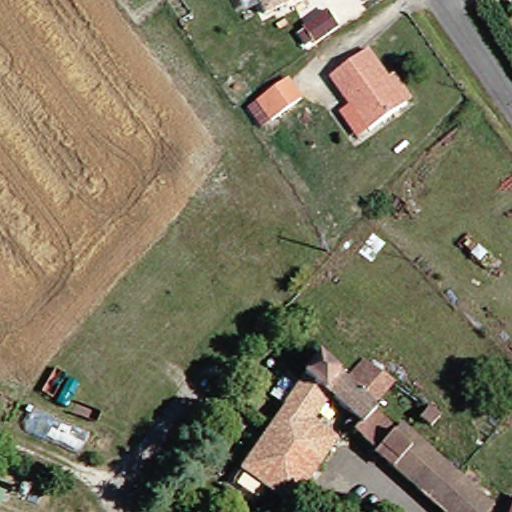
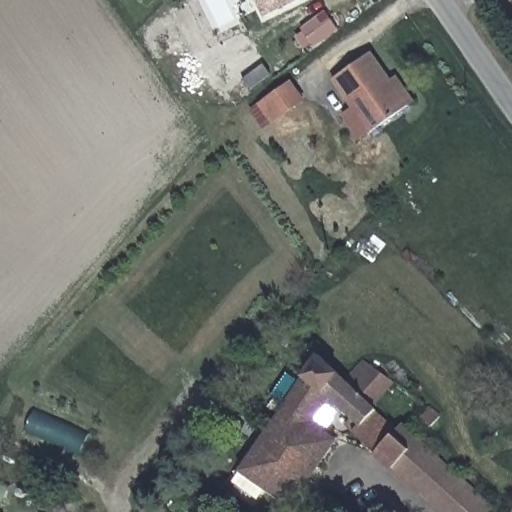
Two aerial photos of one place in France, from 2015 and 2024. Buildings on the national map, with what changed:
unchanged [(248,0),(290,0),(255,17),(248,0)]
unchanged [(332,111),(344,103),(328,80),(365,54),(385,82),(391,78),(408,103),(403,107),(366,133),(353,142),(332,111)]
unchanged [(250,110),(280,88),(293,106),(263,128),(250,110)]
unchanged [(279,406),(314,356),(341,382),(359,361),(378,376),(360,398),(359,399),(371,411),(370,412),(391,430),(396,425),(487,507),(483,512),(437,512),(341,425),(347,417),(326,397),(323,402),(307,424),(331,441),(286,507),(236,472),(280,407),(279,406)]
unchanged [(420,419),(428,409),(440,418),(433,428),(420,419)]
unchanged [(1,512),(0,512),(0,486),(11,491),(1,512)]
unchanged [(512,501),(512,512),(505,512),(509,500),(512,501)]

